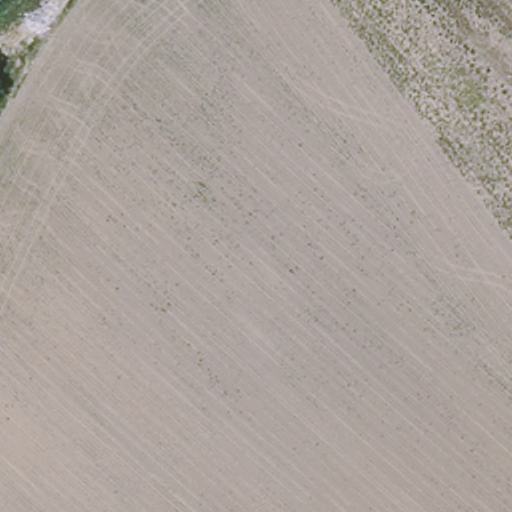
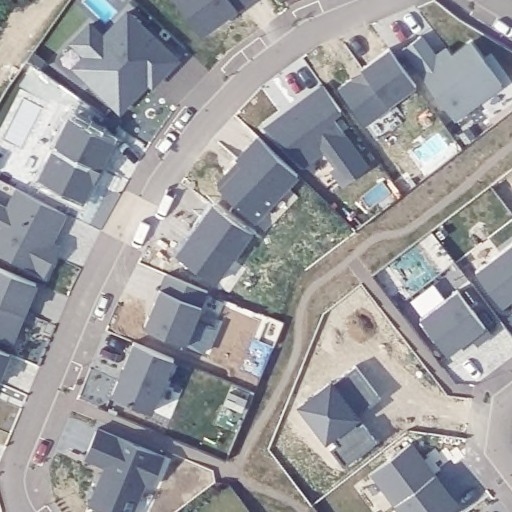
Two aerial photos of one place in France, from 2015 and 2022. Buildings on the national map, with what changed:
new [(229,12),(228,10),(219,16),(221,18),(201,34),(176,0),(246,0),(229,12)]
new [(89,23),(103,36),(128,11),(144,27),(141,30),(146,35),(149,32),(178,59),(153,85),(148,81),(119,111),(73,67),(85,55),(71,42),(89,23)]
new [(421,36),(436,56),(447,48),(453,56),(471,42),(502,84),(454,119),(403,49),(421,36)]
new [(351,78),(356,79),(365,72),(361,68),(389,48),(416,84),(389,104),(391,105),(366,124),(339,87),(351,78)]
new [(283,114),(286,118),(296,111),(293,106),(324,85),(341,109),(332,115),(369,166),(342,185),(330,168),(334,165),(323,149),(301,164),(264,127),(283,114)]
new [(71,116),(114,138),(98,168),(94,166),(88,179),(92,181),(81,202),(38,180),(71,116)]
new [(220,180),(226,173),(233,173),(243,164),(237,158),(259,136),(298,173),(253,219),(220,187),(220,180)]
new [(54,255),(44,275),(0,253),(0,204),(6,207),(15,188),(66,213),(53,241),(59,245),(54,255)]
new [(196,229),(214,204),(251,230),(214,282),(178,255),(189,238),(196,229)]
new [(476,272),(512,244),(512,298),(502,305),(476,272)]
new [(35,283),(23,313),(18,311),(14,321),(19,322),(11,343),(0,338),(0,268),(35,283)]
new [(148,315),(151,316),(156,305),(153,304),(166,273),(208,290),(185,344),(144,326),(148,315)]
new [(461,344),(448,354),(420,318),(457,290),(492,335),(477,346),(474,341),(464,348),(461,344)]
new [(123,367),(133,341),(173,358),(151,411),(111,394),(118,379),(123,367)]
new [(9,353),(0,375),(0,349),(9,353)]
new [(164,456),(151,485),(144,482),(132,512),(106,512),(88,504),(105,466),(84,457),(97,428),(164,456)]
new [(457,505),(448,512),(401,512),(371,473),(409,443),(457,505)]

